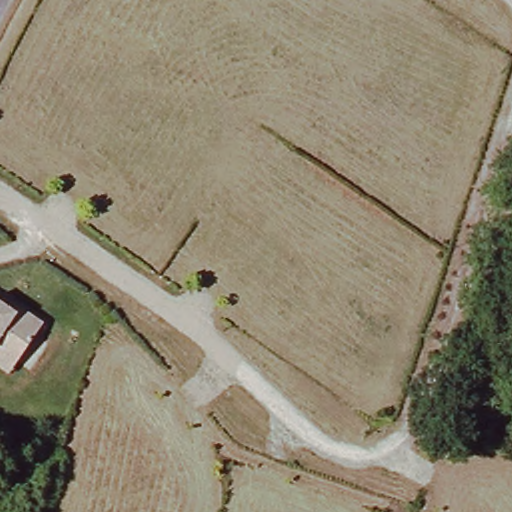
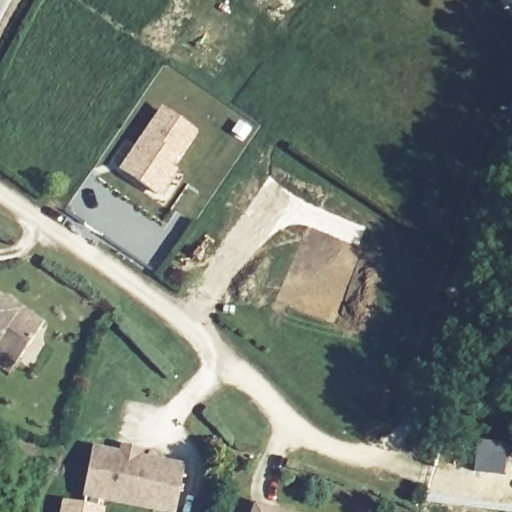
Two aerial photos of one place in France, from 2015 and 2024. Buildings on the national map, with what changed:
new [(172,167),(176,171),(159,196),(119,169),(161,107),(197,132),(172,167)]
unchanged [(0,369),(0,304),(1,305),(6,299),(21,310),(45,326),(20,361),(10,375),(0,369)]
new [(476,444),(507,449),(504,475),(472,471),(476,444)]
new [(152,507),(77,492),(87,446),(116,452),(118,446),(133,449),(131,456),(179,465),(172,496),(170,511),(152,507)]
new [(105,508),(104,512),(58,512),(61,499),(105,508)]
new [(272,512),(247,512),(250,504),(272,512)]

